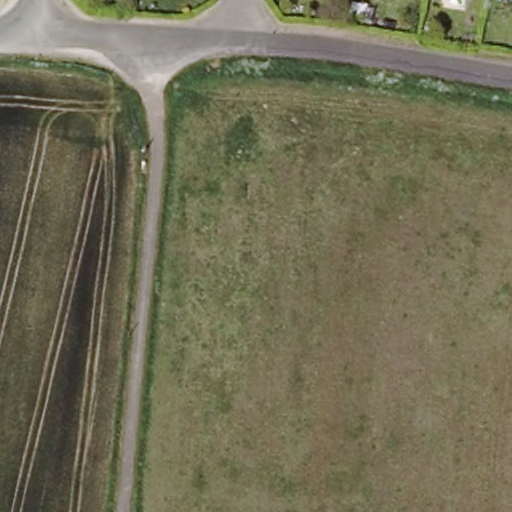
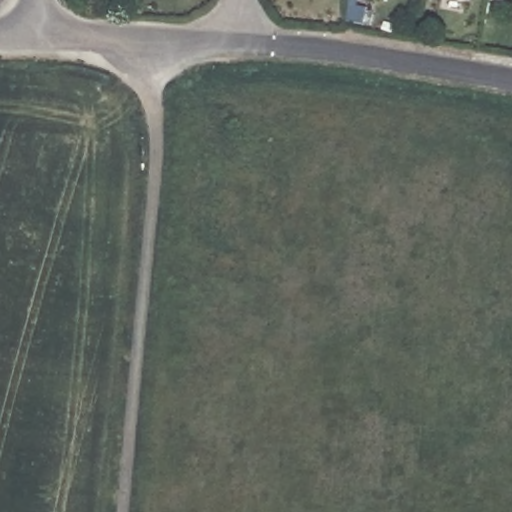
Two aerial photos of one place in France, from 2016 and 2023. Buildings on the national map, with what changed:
unchanged [(457,0),(470,0),(470,2),(457,0)]

